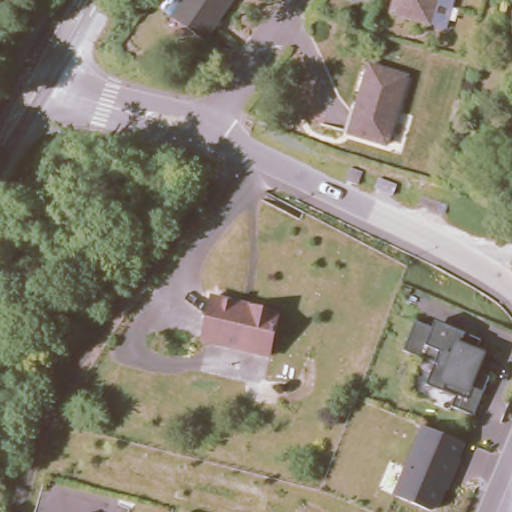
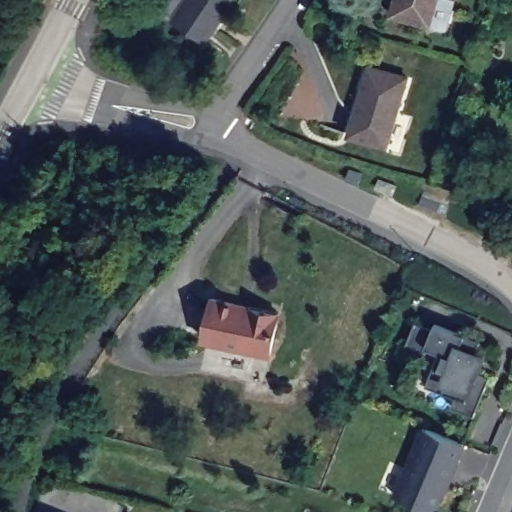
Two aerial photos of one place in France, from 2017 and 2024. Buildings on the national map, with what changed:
unchanged [(231,0),(204,40),(172,20),(185,0),(231,0)]
unchanged [(435,0),(428,24),(392,14),(396,0),(435,0)]
unchanged [(406,76),(386,146),(349,134),(370,65),(406,76)]
unchanged [(345,180),(349,167),(361,172),(357,185),(345,180)]
unchanged [(386,179),(397,183),(393,195),(382,191),(386,179)]
unchanged [(205,296),(279,313),(267,354),(199,340),(205,296)]
unchanged [(435,328),(438,322),(482,340),(477,349),(484,352),(474,375),(487,382),(474,416),(452,410),(455,396),(425,383),(431,363),(406,353),(415,321),(435,328)]
unchanged [(420,426),(462,443),(436,510),(395,495),(420,426)]

